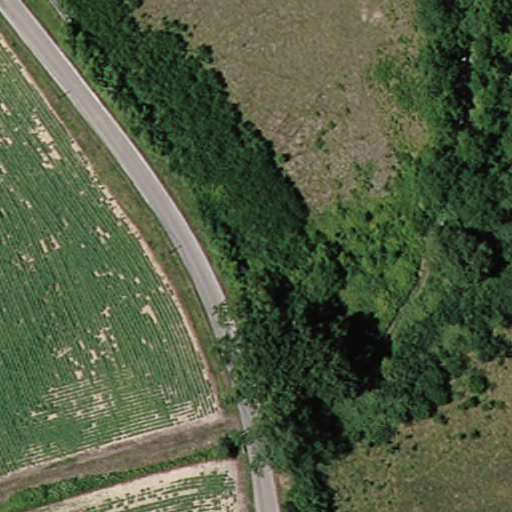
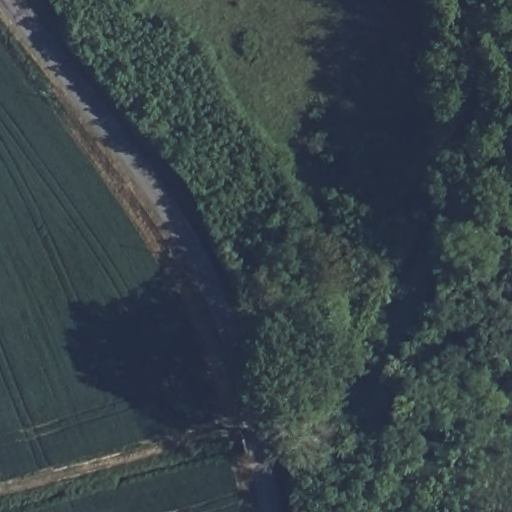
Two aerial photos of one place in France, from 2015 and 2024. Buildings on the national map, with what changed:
unchanged [(275,325),(298,320),(303,354),(282,359),(275,325)]

